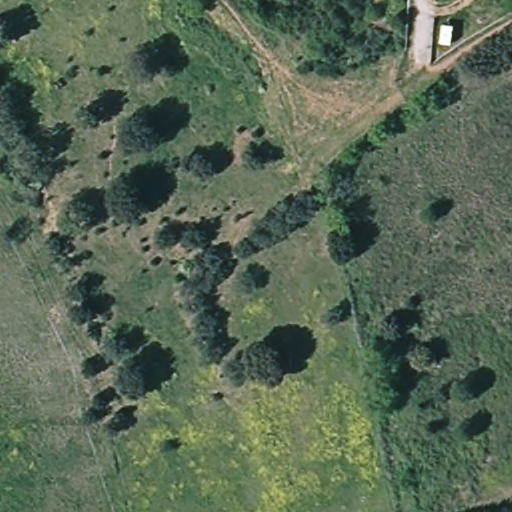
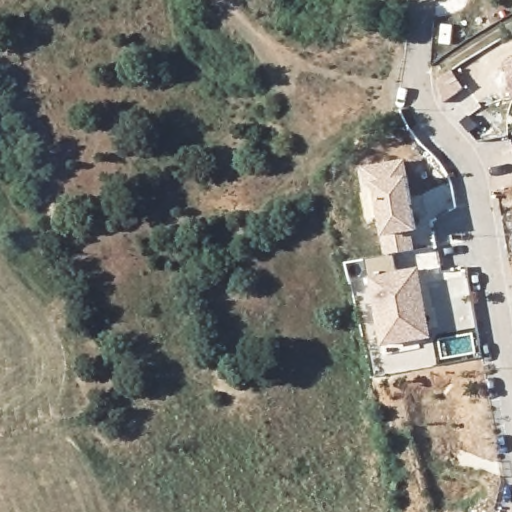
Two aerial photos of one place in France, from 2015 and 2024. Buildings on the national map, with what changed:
new [(512,64),(512,74),(510,64),(512,64)]
new [(403,164),(415,232),(409,233),(413,253),(394,255),(386,257),(383,237),(384,236),(375,187),(367,189),(364,171),(403,164)]
new [(386,257),(394,255),(397,275),(416,272),(429,339),(416,341),(418,351),(384,357),(370,280),(367,281),(363,262),(386,257)]

